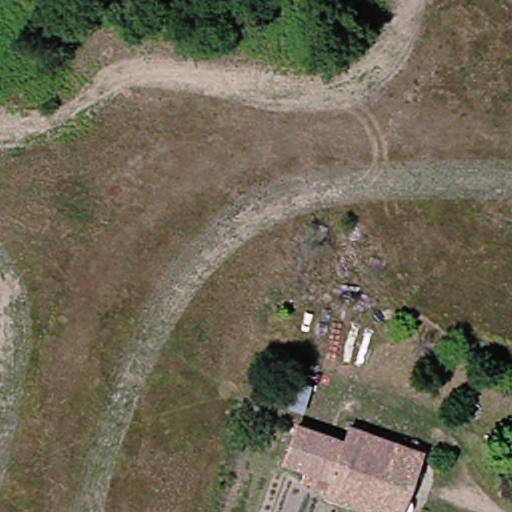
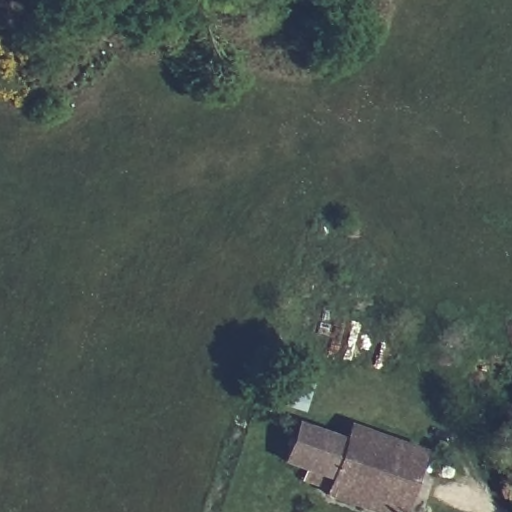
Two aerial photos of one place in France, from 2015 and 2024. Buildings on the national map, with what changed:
unchanged [(287,453),(302,416),(347,435),(331,472),(287,453)]
unchanged [(383,510),(328,488),(331,472),(347,435),(354,417),(378,428),(411,442),(383,510)]
unchanged [(400,512),(387,512),(383,510),(411,442),(427,448),(400,512)]

